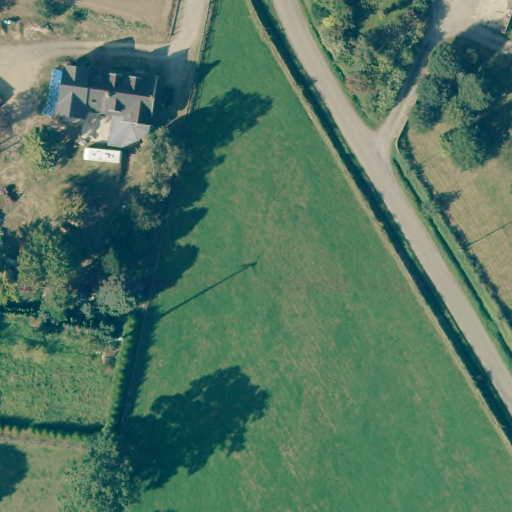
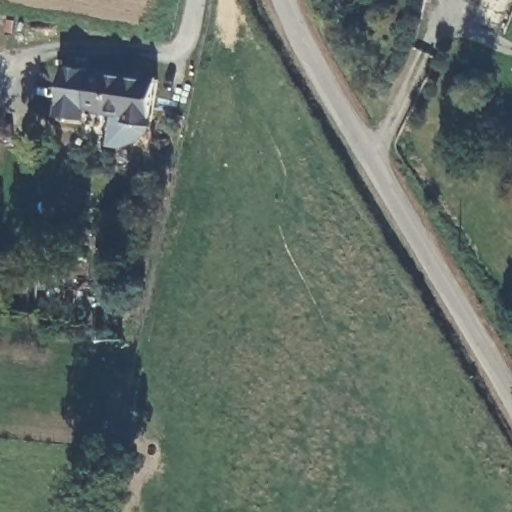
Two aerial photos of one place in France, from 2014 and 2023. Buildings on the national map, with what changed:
unchanged [(92,107),(94,107),(93,117),(66,114),(72,64),(97,67),(92,107)]
unchanged [(145,140),(130,143),(119,142),(122,111),(94,107),(92,107),(97,67),(165,76),(160,124),(156,123),(155,130),(145,140)]

